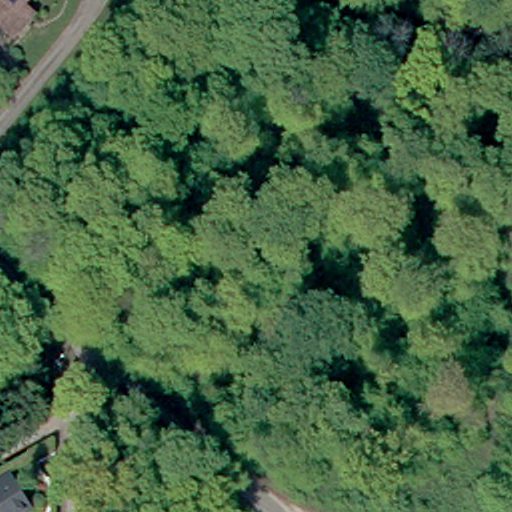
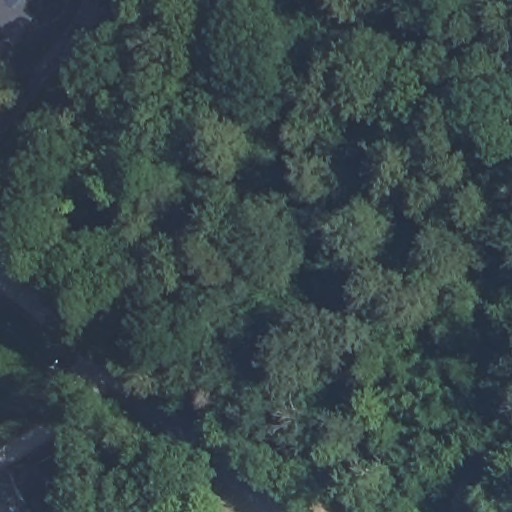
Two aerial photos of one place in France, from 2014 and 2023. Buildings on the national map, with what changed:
unchanged [(0,28),(0,0),(29,0),(2,30),(0,28)]
unchanged [(31,512),(0,512),(0,479),(10,474),(31,512)]

